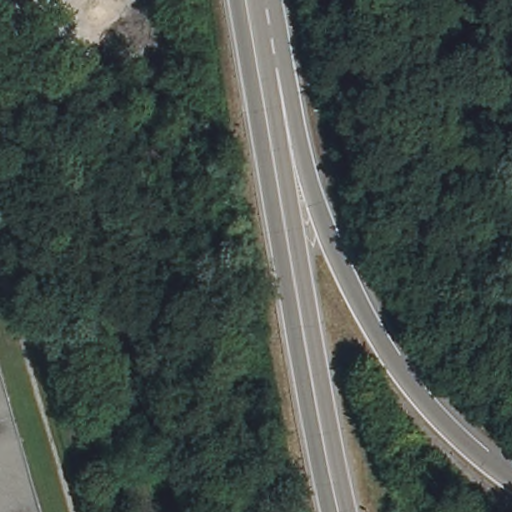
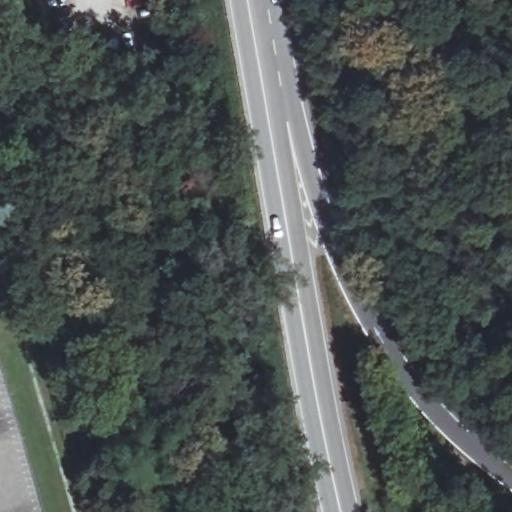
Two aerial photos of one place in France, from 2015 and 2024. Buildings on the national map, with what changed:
unchanged [(0,512),(0,359),(45,512),(0,512)]

